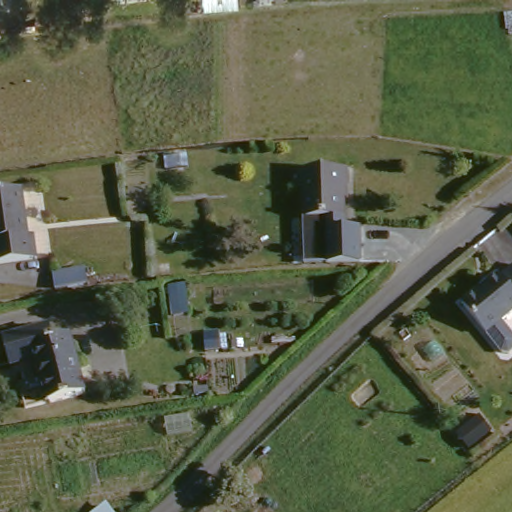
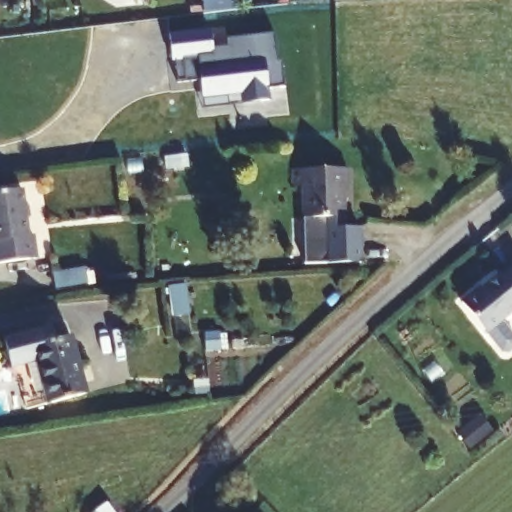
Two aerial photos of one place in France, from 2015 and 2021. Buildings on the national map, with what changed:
unchanged [(203,9),(202,0),(239,0),(239,7),(203,9)]
new [(200,79),(184,81),(182,59),(172,60),(169,32),(210,29),(211,49),(229,47),(229,38),(274,34),(277,62),(282,61),(284,86),(267,89),(268,100),(243,102),(241,91),(201,96),(200,79)]
unchanged [(350,166),(350,185),(345,186),(347,217),(325,218),(307,219),(305,189),(294,188),(293,171),(350,166)]
unchanged [(22,189),(27,235),(35,234),(36,258),(0,262),(0,191),(22,189)]
unchanged [(362,216),(361,261),(325,262),(325,218),(347,217),(362,216)]
unchanged [(504,346),(491,333),(481,323),(463,303),(512,261),(512,313),(506,320),(512,326),(512,345),(510,346),(504,346)]
unchanged [(88,268),(89,286),(74,288),(60,290),(59,272),(88,268)]
unchanged [(30,342),(35,365),(12,370),(3,338),(52,325),(56,336),(30,342)]
unchanged [(67,333),(82,389),(44,400),(30,342),(67,333)]

